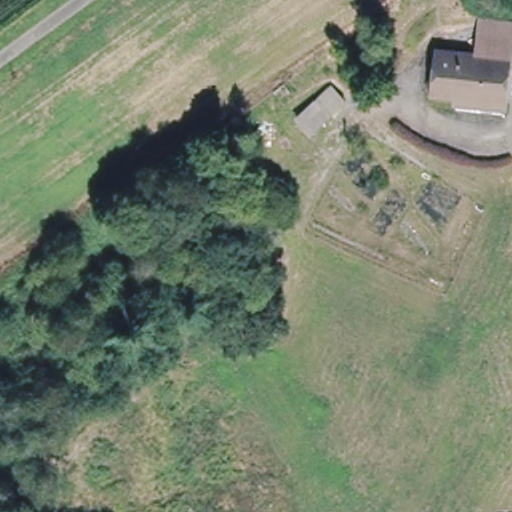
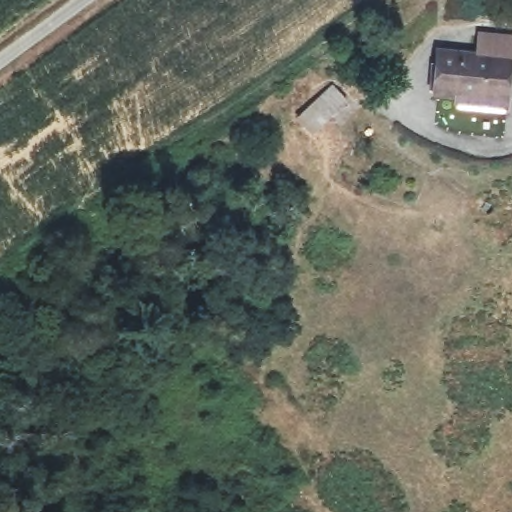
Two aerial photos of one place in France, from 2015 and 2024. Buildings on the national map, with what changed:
unchanged [(429,103),(433,50),(475,52),(477,19),(512,22),(512,33),(508,106),(429,103)]
unchanged [(308,136),(289,114),(325,81),(345,103),(308,136)]

